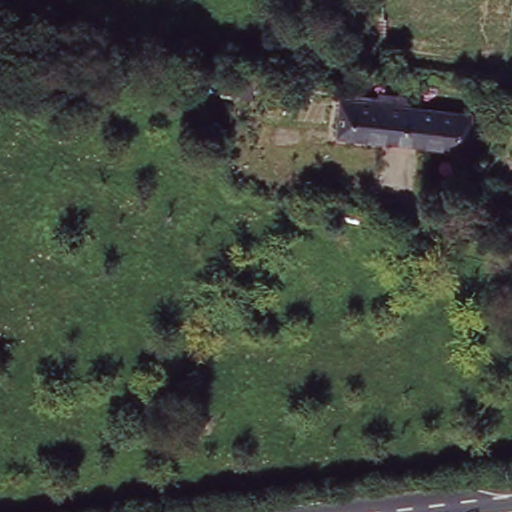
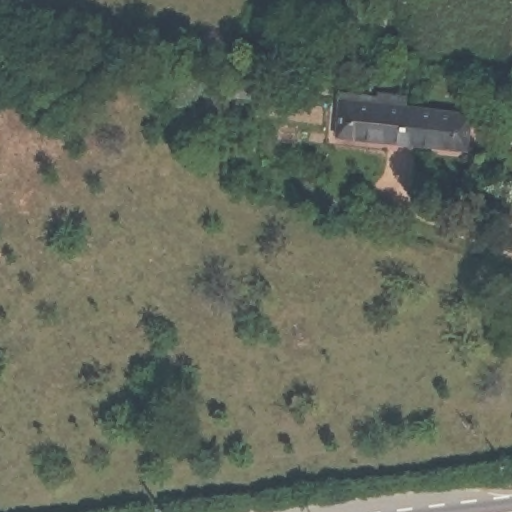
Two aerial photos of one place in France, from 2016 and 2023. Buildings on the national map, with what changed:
unchanged [(392,145),(325,138),(329,97),(395,103),(392,145)]
unchanged [(477,112),(474,152),(392,145),(395,103),(477,112)]

